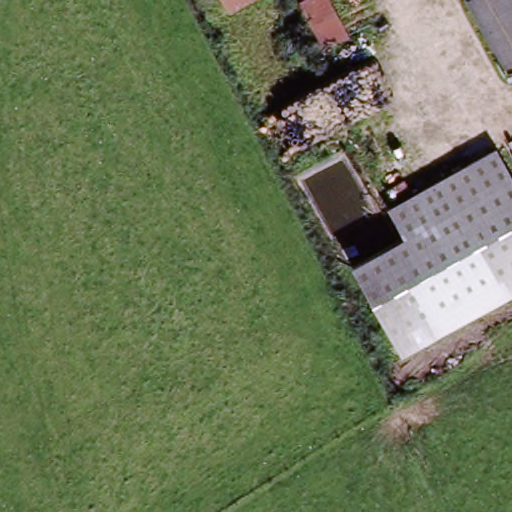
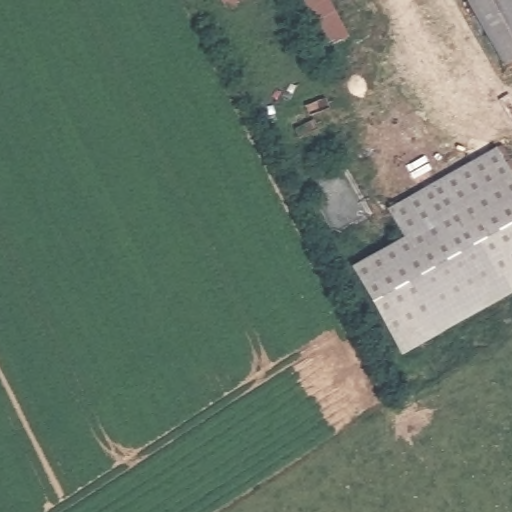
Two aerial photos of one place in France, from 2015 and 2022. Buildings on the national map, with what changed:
unchanged [(295,6),(307,0),(323,0),(346,41),(319,56),(295,6)]
unchanged [(476,0),(512,0),(512,58),(507,61),(476,0)]
unchanged [(512,184),(512,298),(394,357),(352,268),(399,242),(387,212),(497,155),(512,184)]

